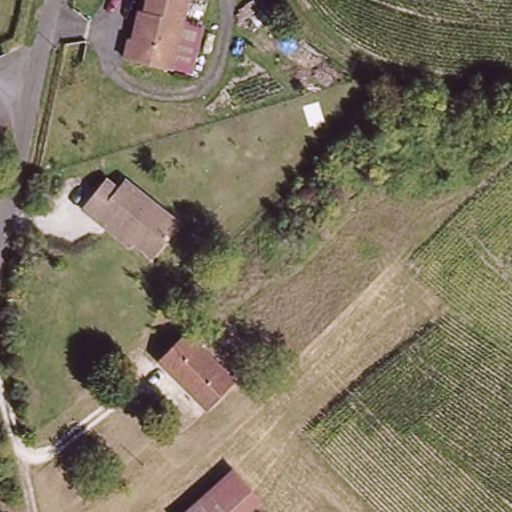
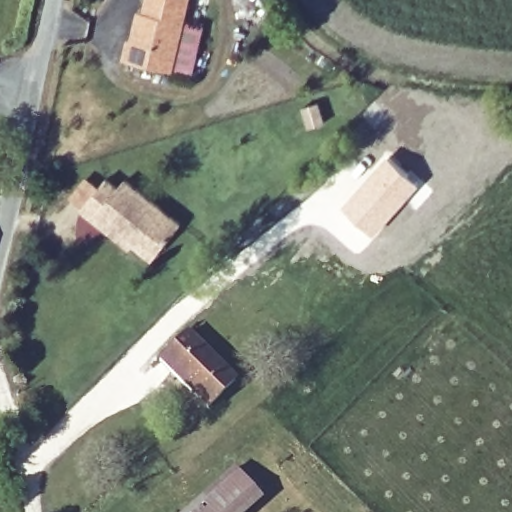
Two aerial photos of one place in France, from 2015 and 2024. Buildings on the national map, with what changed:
unchanged [(142,0),(175,0),(119,54),(123,34),(129,34),(132,17),(137,15),(142,0)]
unchanged [(175,0),(185,0),(181,17),(167,66),(119,54),(175,0)]
unchanged [(181,17),(206,24),(196,72),(167,66),(181,17)]
new [(389,154),(421,182),(378,231),(344,202),(389,154)]
unchanged [(174,227),(145,260),(91,214),(87,217),(72,205),(99,177),(111,186),(118,177),(174,227)]
unchanged [(204,409),(161,363),(188,337),(232,383),(204,409)]
unchanged [(200,512),(243,477),(259,496),(239,512),(200,512)]

